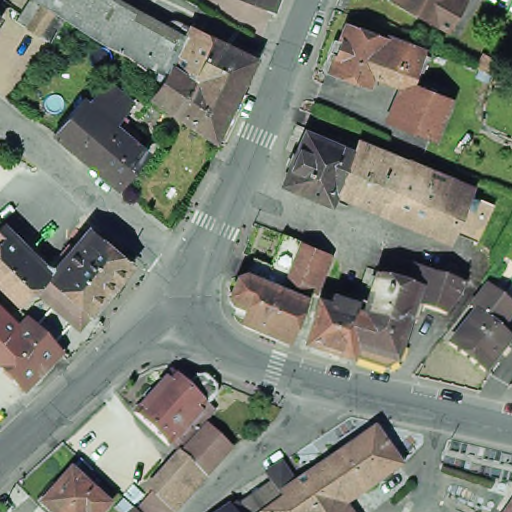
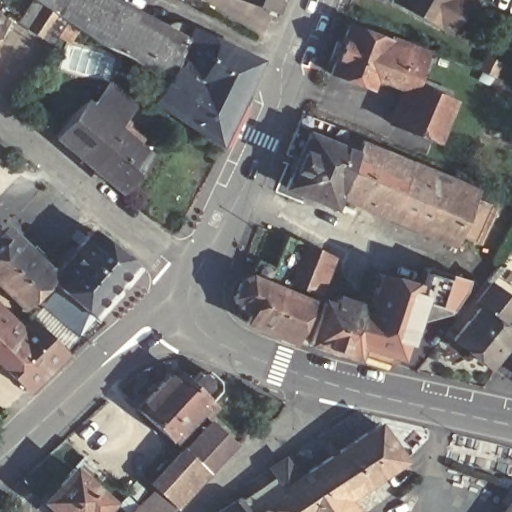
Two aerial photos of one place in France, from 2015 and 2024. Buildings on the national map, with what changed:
unchanged [(31,29),(20,21),(33,0),(100,0),(138,17),(135,24),(163,37),(147,70),(130,58),(117,52),(108,47),(70,21),(69,21),(63,30),(54,44),(31,29)]
unchanged [(273,11),(245,0),(277,0),(273,11)]
unchanged [(389,4),(391,0),(461,0),(465,2),(448,32),(438,27),(437,30),(409,14),(389,4)]
unchanged [(5,27),(0,33),(0,24),(5,27)]
unchanged [(234,131),(166,85),(151,73),(147,70),(163,37),(167,27),(177,32),(181,24),(262,60),(244,100),(249,104),(234,131)]
unchanged [(372,78),(369,91),(331,77),(347,28),(402,47),(389,87),(372,78)]
unchanged [(415,80),(407,97),(389,87),(402,47),(405,40),(415,44),(427,49),(415,80)]
unchanged [(490,55),(504,64),(497,77),(481,69),(490,55)]
unchanged [(430,143),(394,129),(407,97),(415,80),(431,87),(429,95),(449,102),(430,143)]
unchanged [(234,131),(226,147),(180,116),(155,100),(166,85),(234,131)]
unchanged [(132,134),(145,145),(140,151),(153,161),(124,195),(59,141),(87,107),(94,112),(112,90),(137,112),(120,134),(127,140),(132,134)]
unchanged [(333,209),(284,187),(305,135),(337,150),(340,142),(357,150),(337,199),(333,209)]
unchanged [(357,150),(359,145),(409,165),(406,171),(387,219),(337,199),(357,150)]
unchanged [(406,171),(426,180),(409,229),(387,219),(406,171)]
unchanged [(480,240),(454,229),(448,244),(409,229),(426,180),(467,197),(494,208),(480,240)]
unchanged [(2,243),(0,241),(0,232),(2,230),(29,257),(0,285),(0,246),(2,243)]
unchanged [(94,230),(139,268),(97,318),(52,280),(94,230)]
unchanged [(250,322),(255,308),(240,302),(237,297),(246,279),(253,276),(260,260),(277,267),(290,236),(301,242),(305,245),(331,258),(315,295),(292,283),(290,288),(289,291),(315,303),(297,341),(250,322)]
unchanged [(0,285),(29,257),(52,280),(24,308),(0,285)]
unchanged [(430,270),(470,283),(465,297),(450,312),(419,303),(422,290),(430,270)]
unchanged [(384,275),(422,290),(419,303),(402,358),(390,364),(360,353),(368,325),(369,321),(372,312),(376,298),(384,275)]
unchanged [(484,298),(495,285),(512,298),(512,324),(509,329),(485,310),(479,305),(480,305),(484,298)]
unchanged [(372,312),(369,321),(368,325),(360,353),(357,360),(312,344),(325,303),(339,308),(342,301),(352,305),(362,309),(372,312)]
unchanged [(20,327),(0,347),(0,306),(20,327)]
unchanged [(485,310),(509,329),(512,332),(512,350),(497,370),(460,341),(485,310)]
unchanged [(23,389),(0,366),(0,347),(26,321),(59,354),(23,389)]
unchanged [(198,420),(190,414),(170,437),(135,405),(167,368),(177,368),(188,378),(196,368),(205,367),(212,373),(215,375),(217,385),(207,396),(214,403),(198,420)]
unchanged [(180,445),(205,416),(230,439),(217,454),(205,467),(186,450),(180,445)]
unchanged [(336,503),(310,465),(380,418),(401,446),(407,455),(350,494),(336,503)]
unchanged [(155,485),(186,450),(205,467),(174,502),(155,485)]
unchanged [(300,472),(310,465),(336,503),(350,494),(362,512),(256,512),(244,495),(277,471),(272,462),(286,452),(300,472)]
unchanged [(73,463),(112,497),(99,512),(62,512),(44,496),(73,463)]
unchanged [(244,495),(256,512),(214,512),(242,492),(244,495)]
unchanged [(512,512),(504,512),(512,499),(512,512)]
unchanged [(145,512),(135,512),(140,507),(145,512)]

